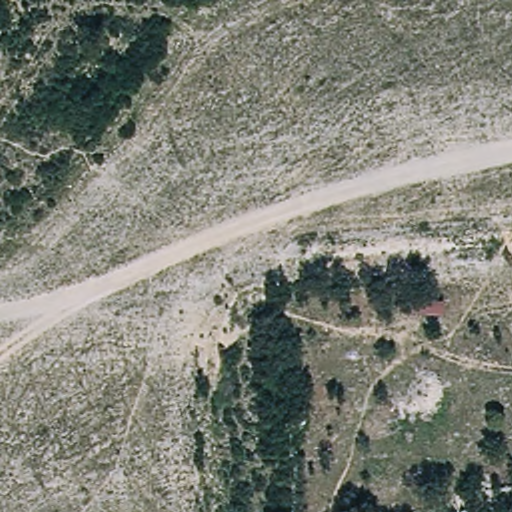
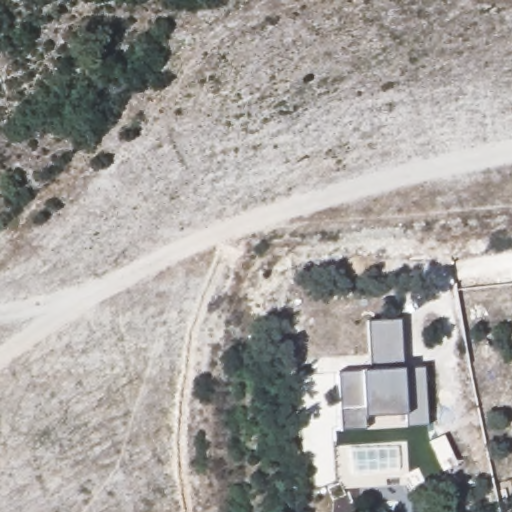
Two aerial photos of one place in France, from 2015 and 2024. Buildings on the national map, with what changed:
new [(361,371),(372,370),(367,322),(400,320),(403,368),(423,367),(427,426),(405,427),(406,415),(366,418),(365,430),(341,430),(337,373),(361,371)]

